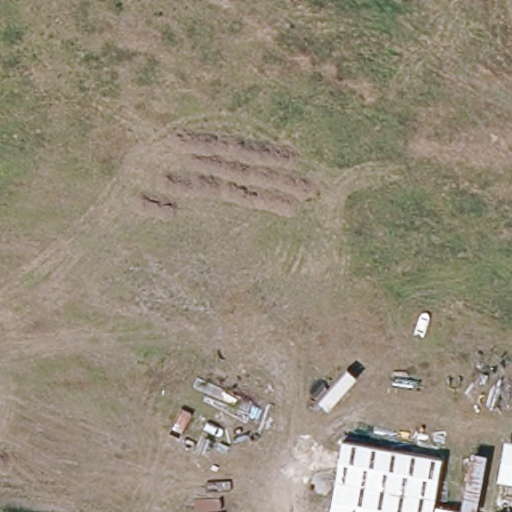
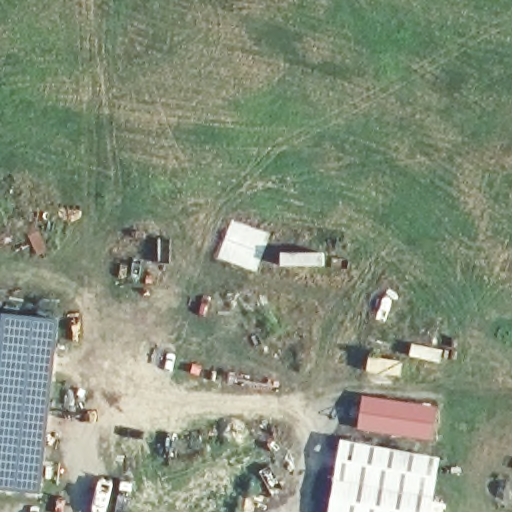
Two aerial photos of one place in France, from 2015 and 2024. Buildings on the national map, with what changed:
new [(60,319),(40,495),(0,490),(0,312),(60,319)]
new [(359,429),(363,395),(438,406),(433,438),(359,429)]
unchanged [(434,512),(329,512),(341,439),(442,459),(434,512)]

